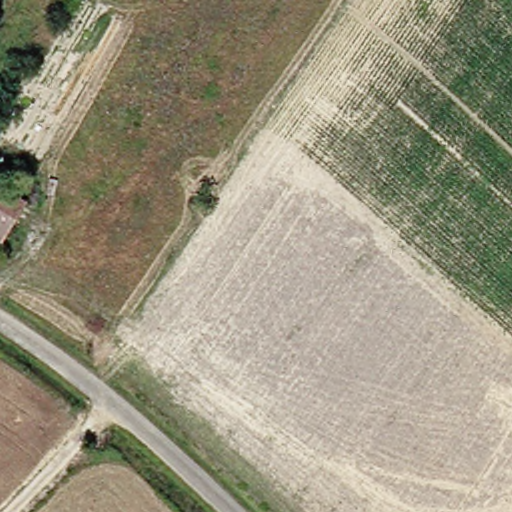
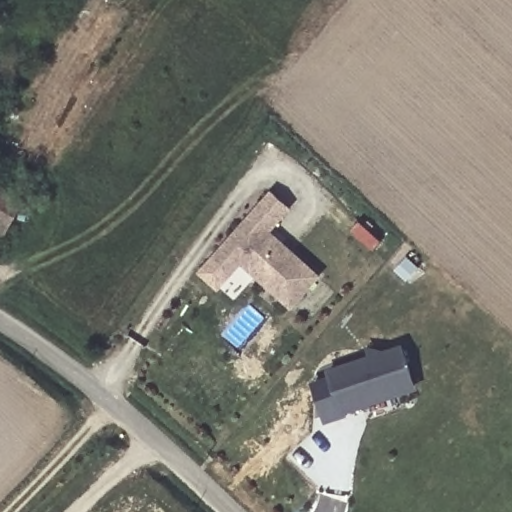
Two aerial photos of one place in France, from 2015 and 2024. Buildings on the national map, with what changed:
unchanged [(11,186),(0,204),(0,179),(11,186)]
unchanged [(33,200),(6,244),(0,239),(0,204),(11,186),(33,200)]
new [(291,207),(271,228),(325,272),(292,307),(240,265),(230,276),(211,256),(272,187),(291,207)]
new [(402,341),(416,386),(343,410),(328,367),(402,341)]

